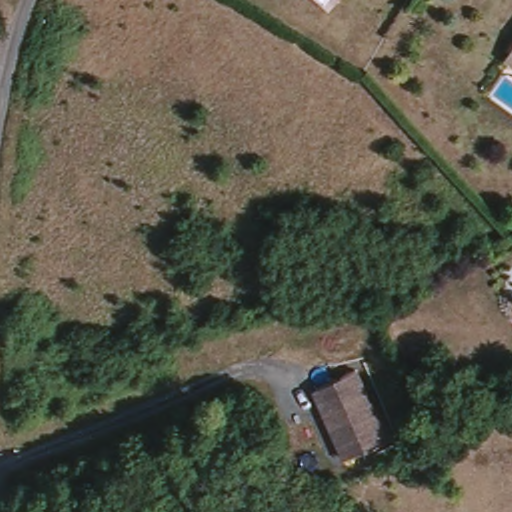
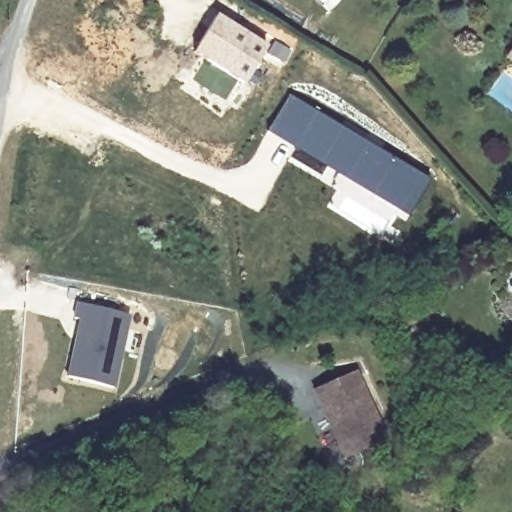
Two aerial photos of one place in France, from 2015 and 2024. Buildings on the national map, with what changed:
new [(220,21),(271,54),(248,90),(198,58),(220,21)]
unchanged [(509,62),(512,57),(512,64),(509,62)]
new [(289,91),(430,179),(406,217),(266,131),(289,91)]
new [(78,318),(72,316),(76,301),(128,314),(110,387),(64,376),(78,318)]
unchanged [(384,442),(344,461),(320,411),(346,399),(338,381),(353,374),(384,442)]

